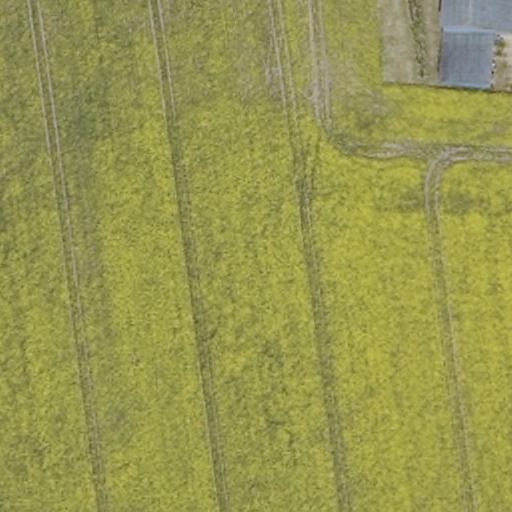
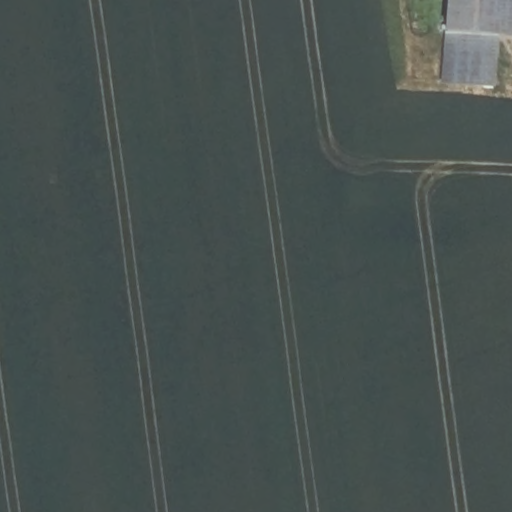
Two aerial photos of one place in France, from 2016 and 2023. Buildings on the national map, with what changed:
unchanged [(448,29),(450,0),(512,0),(512,35),(500,34),(448,29)]
unchanged [(500,34),(495,85),(443,80),(448,29),(500,34)]

